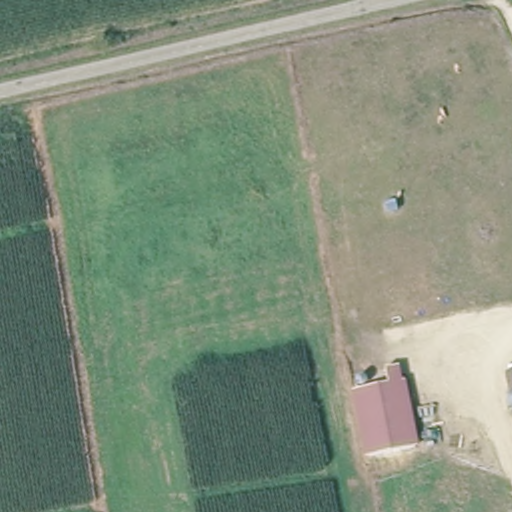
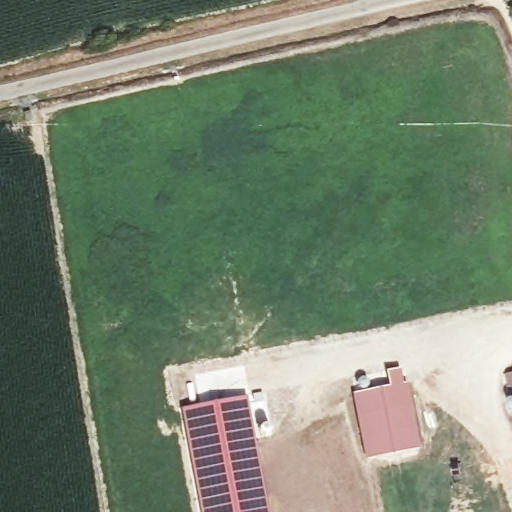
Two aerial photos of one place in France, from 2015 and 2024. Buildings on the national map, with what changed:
unchanged [(512,390),(505,391),(498,367),(512,365),(512,390)]
unchanged [(388,385),(385,370),(400,366),(404,382),(408,381),(420,448),(365,458),(350,391),(388,385)]
new [(180,408),(248,395),(269,512),(200,512),(180,408)]

